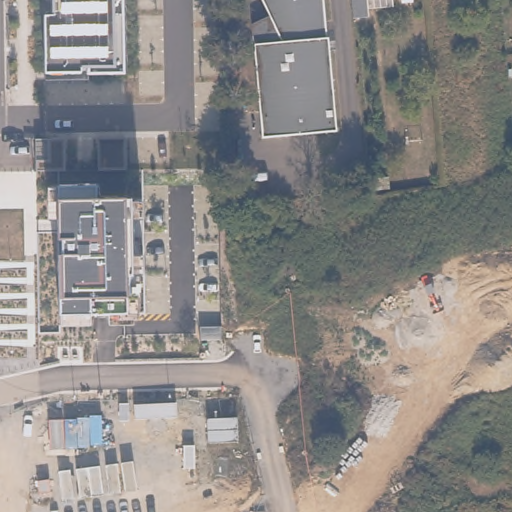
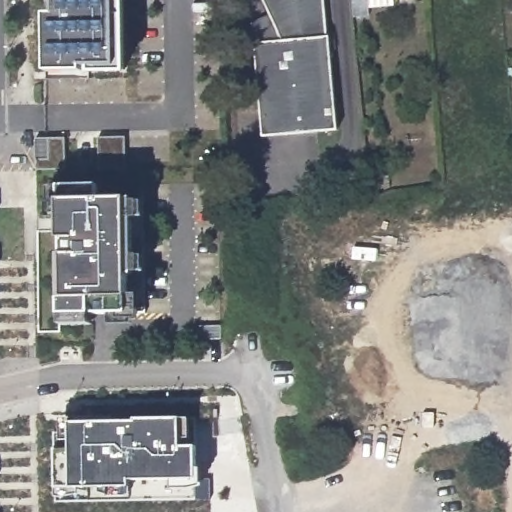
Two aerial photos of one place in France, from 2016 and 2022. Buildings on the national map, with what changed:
unchanged [(123,70),(44,70),(45,12),(53,12),(52,0),(122,0),(123,70)]
unchanged [(255,40),(254,21),(272,13),(266,0),(326,0),(328,36),(330,36),(336,130),(261,135),(255,40)]
unchanged [(391,6),(367,8),(367,15),(351,16),(349,0),(390,0),(391,6)]
unchanged [(99,199),(127,200),(141,200),(140,313),(128,313),(93,313),(63,314),(61,218),(49,218),(49,201),(49,186),(61,185),(99,185),(99,199)]
new [(136,419),(136,416),(181,416),(182,444),(196,443),(197,466),(202,466),(203,483),(190,487),(172,487),(172,477),(131,478),(130,486),(79,486),(70,486),(55,486),(55,449),(70,448),(70,438),(60,438),(60,416),(75,415),(75,420),(136,419)]
new [(70,486),(79,486),(130,486),(131,478),(172,477),(172,487),(190,487),(203,483),(209,498),(194,498),(55,499),(55,486),(70,486)]

